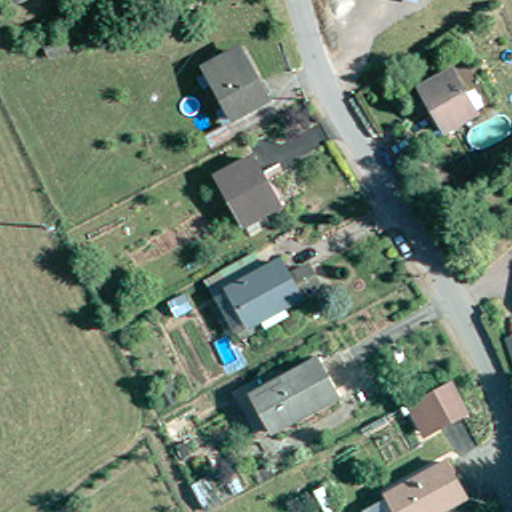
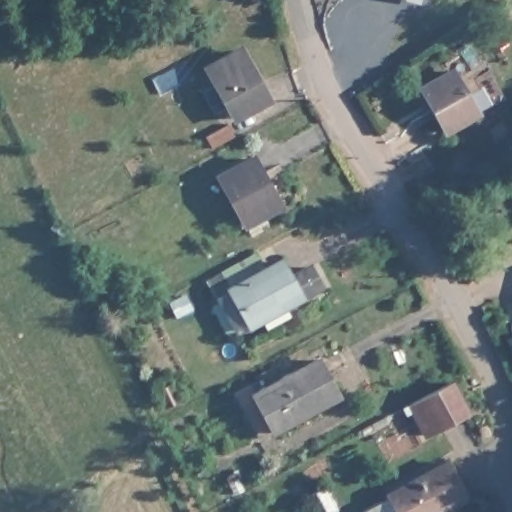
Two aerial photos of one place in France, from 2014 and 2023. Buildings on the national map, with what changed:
unchanged [(227,112),(204,65),(239,48),(262,94),(227,112)]
unchanged [(474,114),(442,132),(419,92),(451,74),(474,114)]
unchanged [(257,172),(272,203),(240,220),(215,173),(251,154),(260,170),(257,172)]
unchanged [(317,264),(327,284),(242,329),(225,299),(237,292),(235,287),(287,260),(295,275),(317,264)]
unchanged [(277,430),(257,394),(324,358),(343,395),(277,430)]
unchanged [(471,413),(426,437),(407,401),(452,378),(471,413)]
unchanged [(440,512),(366,512),(361,504),(377,496),(376,493),(387,487),(386,485),(449,453),(469,489),(437,506),(440,512)]

